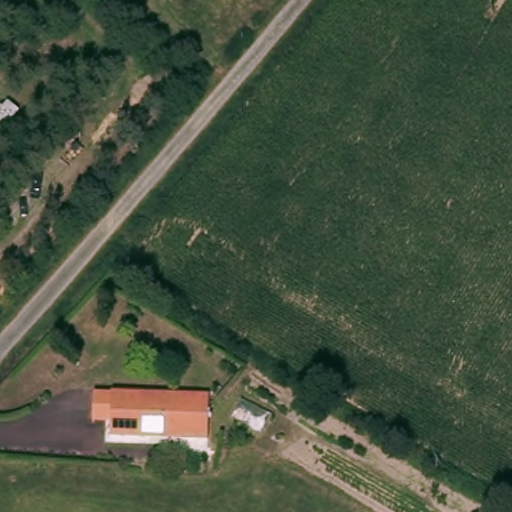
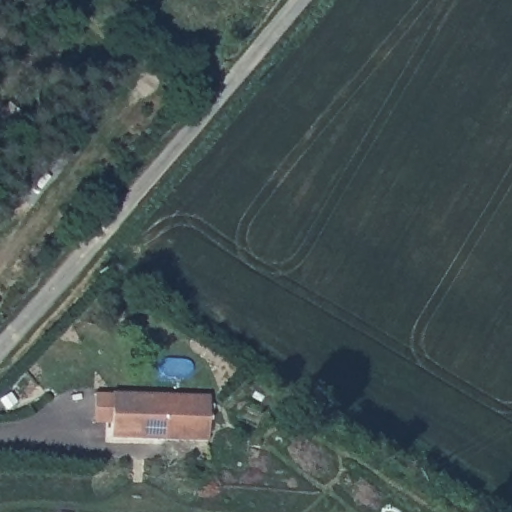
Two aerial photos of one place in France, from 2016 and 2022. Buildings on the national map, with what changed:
unchanged [(206,395),(207,438),(109,441),(109,397),(206,395)]

